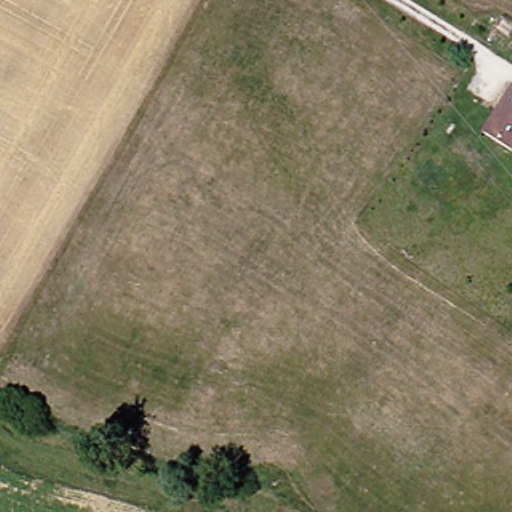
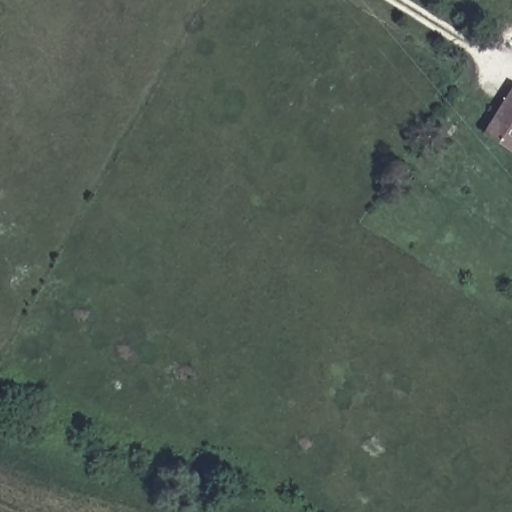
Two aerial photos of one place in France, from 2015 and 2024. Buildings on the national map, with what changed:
unchanged [(507,142),(491,132),(512,97),(512,146),(507,142)]

